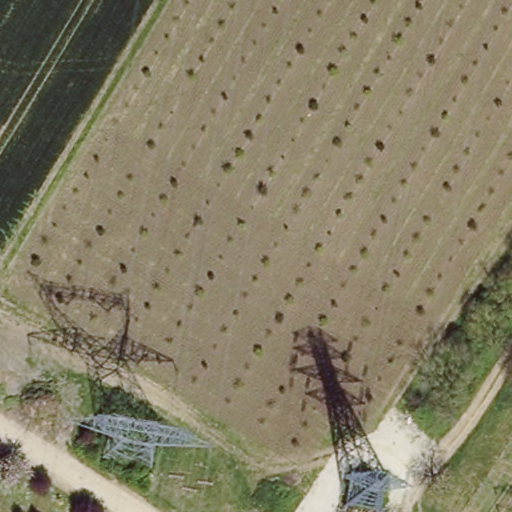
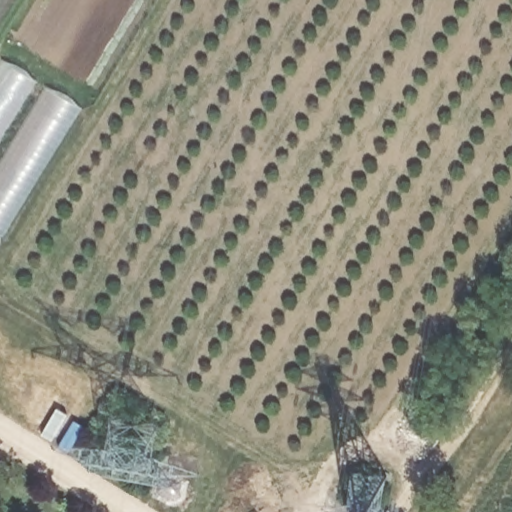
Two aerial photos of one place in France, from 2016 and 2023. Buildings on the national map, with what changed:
new [(0,141),(0,64),(2,60),(36,81),(0,141)]
new [(2,236),(0,235),(0,167),(47,87),(81,107),(2,236)]

